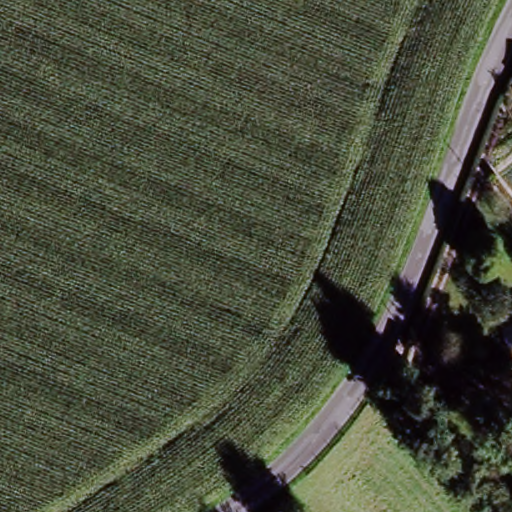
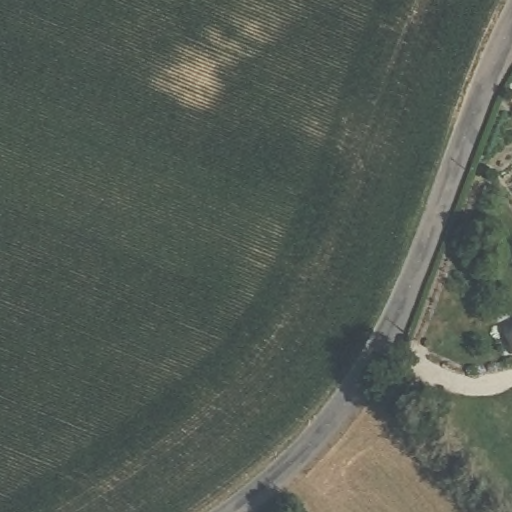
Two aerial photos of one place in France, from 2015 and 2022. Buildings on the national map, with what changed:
unchanged [(508,330),(512,328),(512,340),(508,330)]

